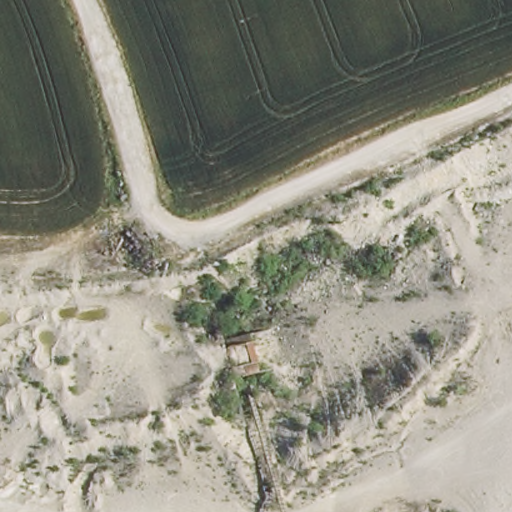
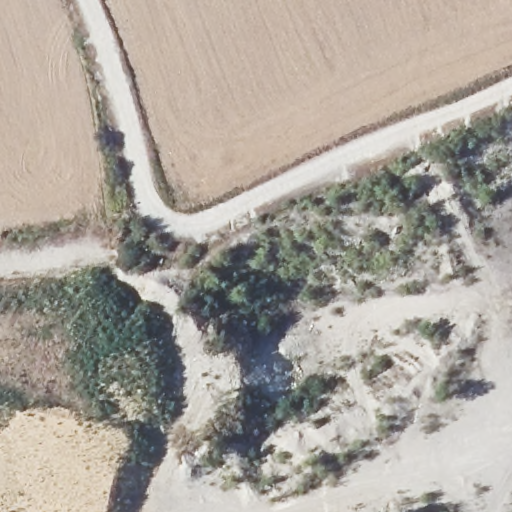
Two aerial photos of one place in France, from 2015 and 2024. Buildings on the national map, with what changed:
unchanged [(256,365),(230,373),(221,333),(246,327),(256,365)]

